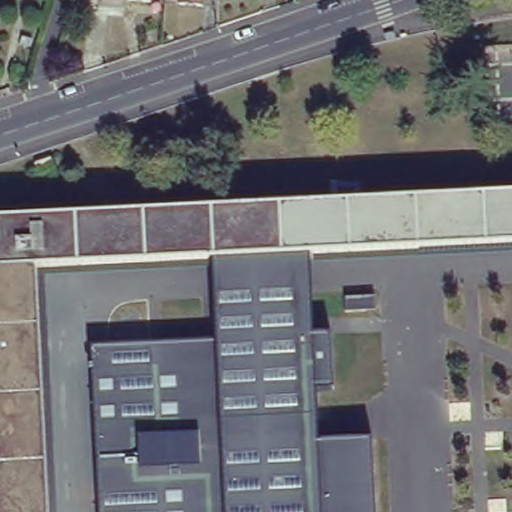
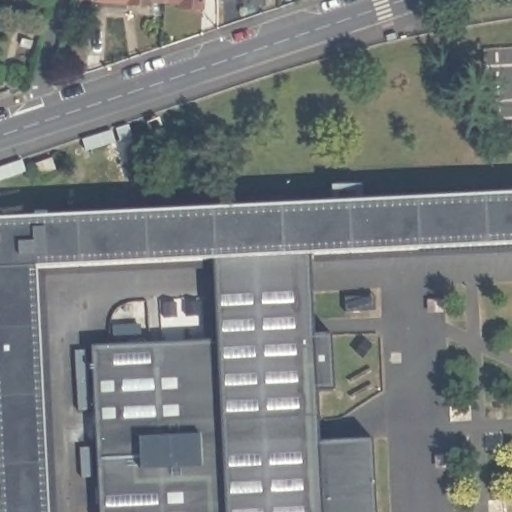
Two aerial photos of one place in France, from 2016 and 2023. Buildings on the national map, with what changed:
unchanged [(198,3),(175,1),(175,0),(198,0),(198,3)]
unchanged [(512,240),(36,263),(49,512),(0,512),(0,214),(512,188),(512,240)]
unchanged [(218,345),(212,255),(305,250),(310,336),(329,335),(332,387),(313,388),(316,442),(370,440),(374,512),(100,512),(91,347),(218,345)]

